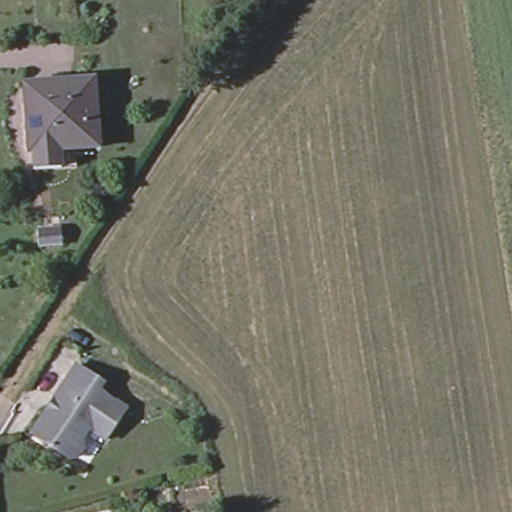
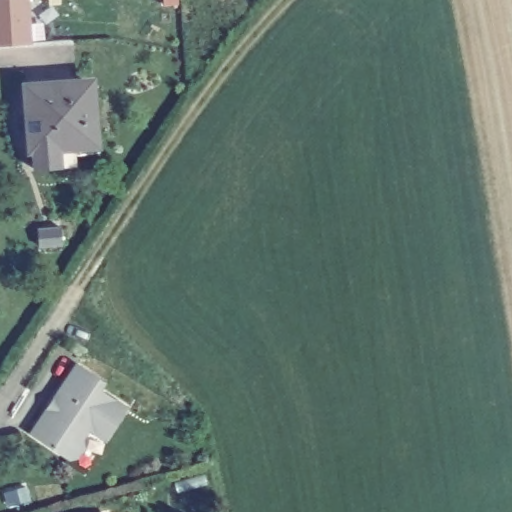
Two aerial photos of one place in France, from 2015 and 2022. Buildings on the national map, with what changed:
new [(0,47),(0,0),(30,0),(32,46),(0,47)]
unchanged [(86,73),(90,154),(30,158),(25,76),(86,73)]
unchanged [(55,242),(31,246),(29,230),(52,226),(55,242)]
unchanged [(101,397),(129,414),(107,447),(90,436),(83,444),(85,455),(77,468),(34,440),(50,416),(55,407),(78,371),(105,389),(101,397)]

